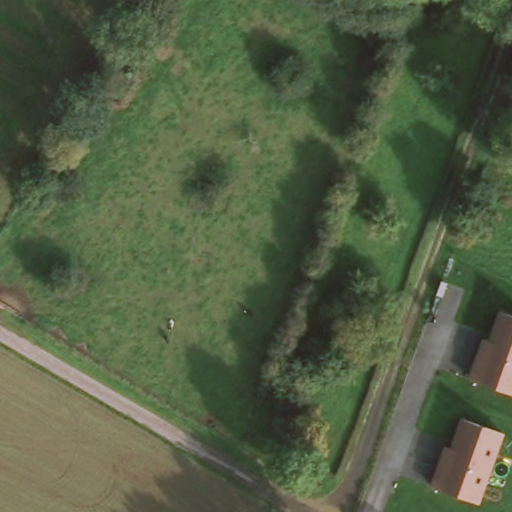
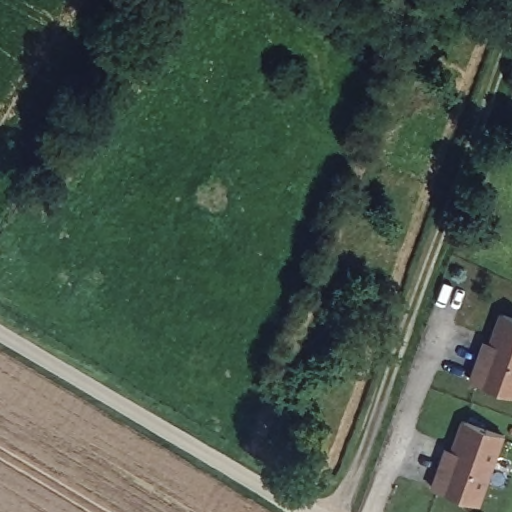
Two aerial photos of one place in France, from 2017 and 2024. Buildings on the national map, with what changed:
unchanged [(469,380),(483,340),(487,341),(498,312),(512,317),(512,395),(469,380)]
unchanged [(331,325),(336,341),(320,346),(315,330),(331,325)]
unchanged [(432,485),(445,446),(450,448),(459,420),(505,435),(480,506),(432,485)]

